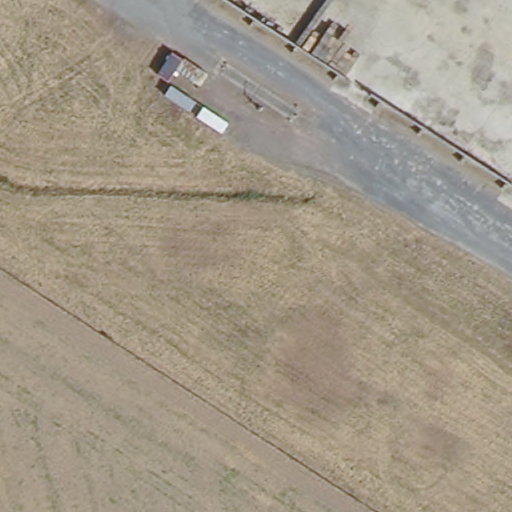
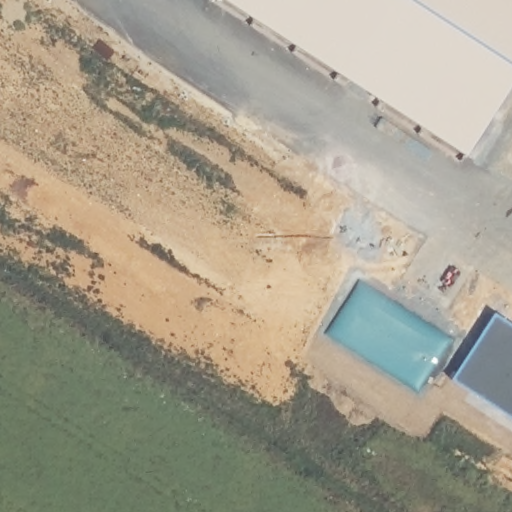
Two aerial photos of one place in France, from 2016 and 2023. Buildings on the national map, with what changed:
demolished [(211,0),(512,0),(512,194),(211,0)]

